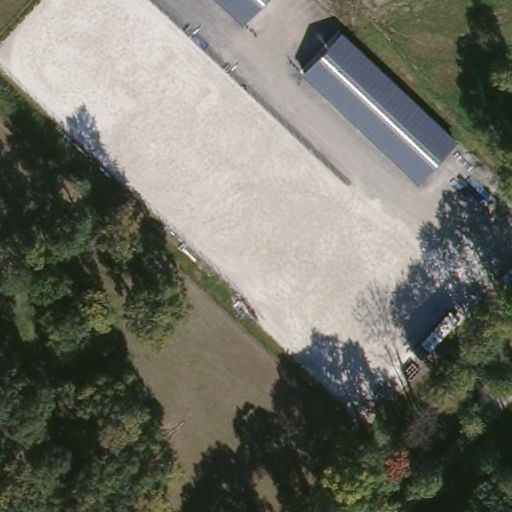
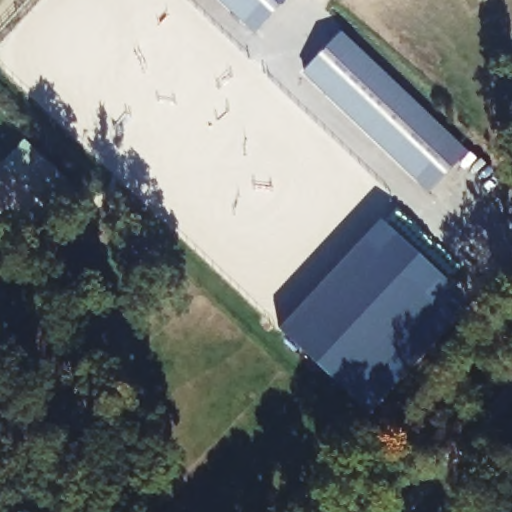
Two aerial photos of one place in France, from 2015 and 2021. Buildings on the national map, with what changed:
unchanged [(219,0),(265,0),(244,24),(219,0)]
unchanged [(303,74),(343,32),(457,141),(419,182),(303,74)]
new [(377,230),(452,300),(351,408),(276,339),(377,230)]

